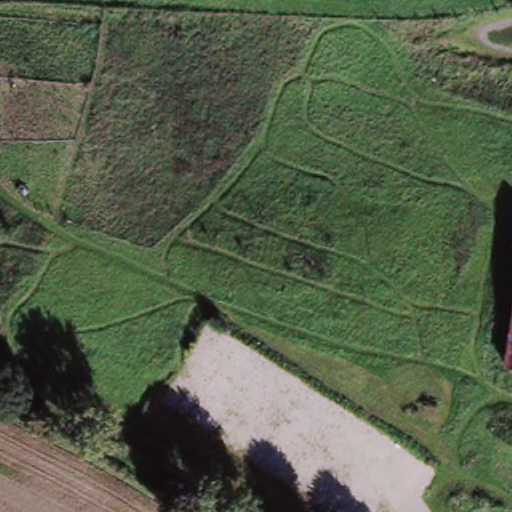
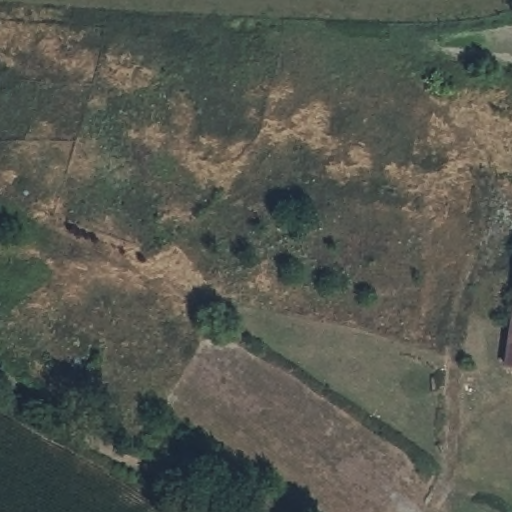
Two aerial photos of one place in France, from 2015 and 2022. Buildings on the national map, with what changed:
unchanged [(504,370),(512,313),(512,372),(504,370)]

